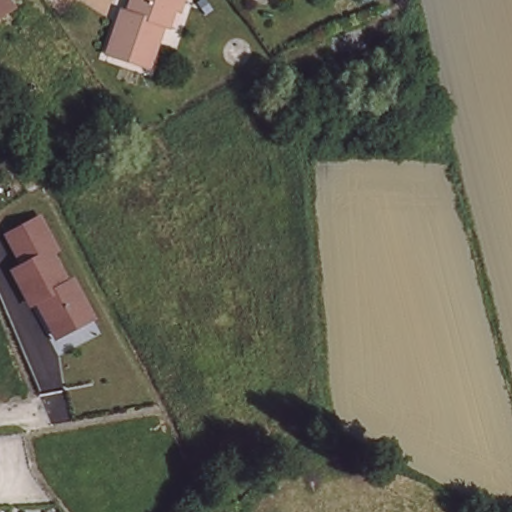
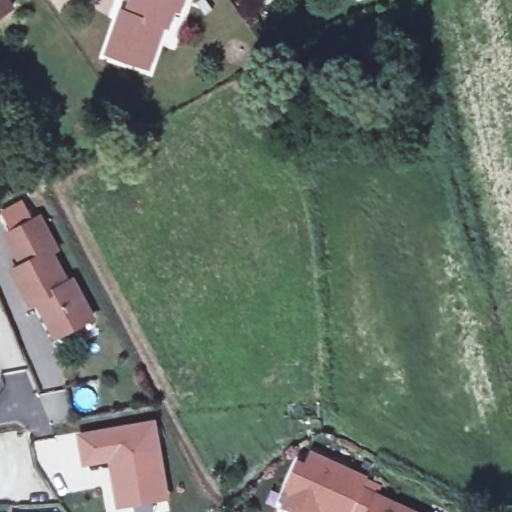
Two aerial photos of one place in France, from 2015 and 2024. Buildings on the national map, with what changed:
unchanged [(13,5),(0,14),(0,0),(10,0),(13,5)]
unchanged [(164,28),(150,71),(108,57),(119,25),(123,15),(128,17),(133,1),(131,0),(185,0),(181,14),(174,12),(168,30),(164,28)]
unchanged [(63,250),(58,254),(68,279),(74,276),(95,318),(55,338),(38,306),(30,310),(10,268),(19,262),(5,234),(46,215),(63,250)]
new [(108,462),(82,466),(76,433),(156,420),(170,500),(117,508),(108,462)]
new [(362,487),(415,512),(329,512),(321,508),(319,512),(299,512),(286,506),(293,490),(288,487),(301,462),(306,465),(312,452),(366,478),(362,487)]

